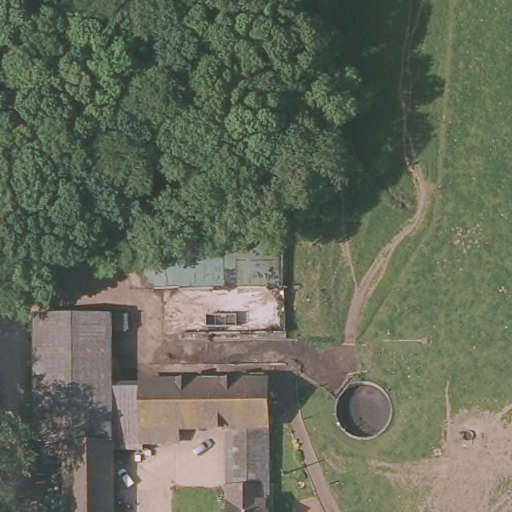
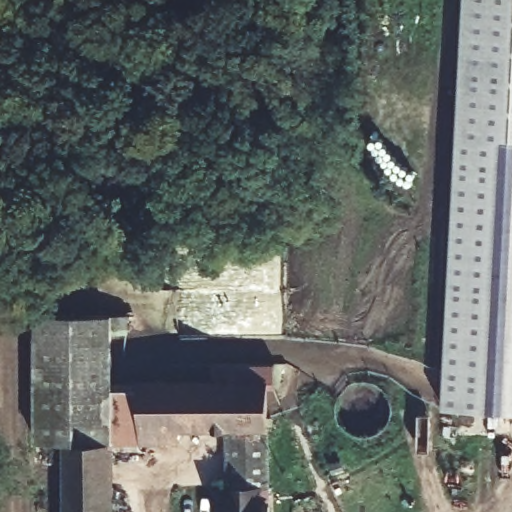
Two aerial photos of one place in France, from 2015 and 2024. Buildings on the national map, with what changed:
new [(464,0),(512,0),(512,413),(440,410),(464,0)]
unchanged [(113,458),(114,512),(68,512),(68,447),(36,446),(37,320),(113,322),(129,322),(130,335),(113,335),(113,384),(113,458)]
unchanged [(246,380),(246,372),(268,373),(270,382),(273,382),(271,431),(227,430),(185,431),(185,447),(147,448),(146,383),(246,380)]
unchanged [(146,383),(147,448),(147,458),(113,458),(113,384),(146,383)]
unchanged [(271,431),(270,512),(229,512),(227,430),(271,431)]

